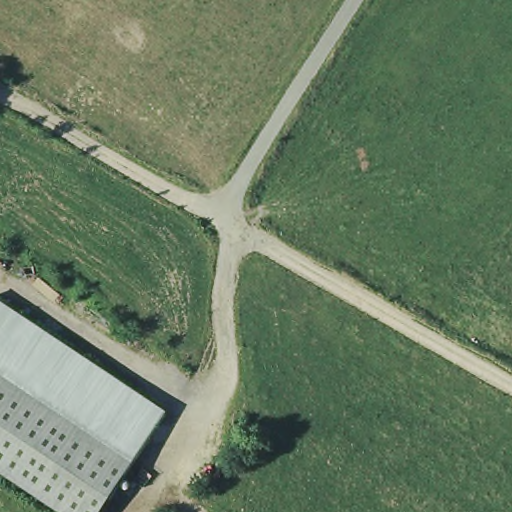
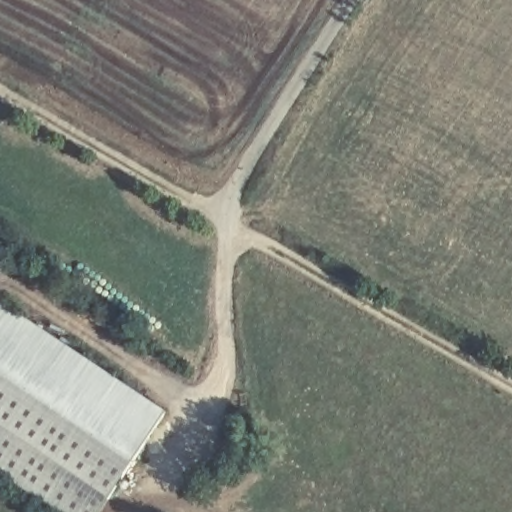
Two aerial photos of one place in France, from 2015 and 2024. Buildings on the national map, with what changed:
unchanged [(165,410),(96,512),(54,512),(0,476),(0,304),(165,410)]

